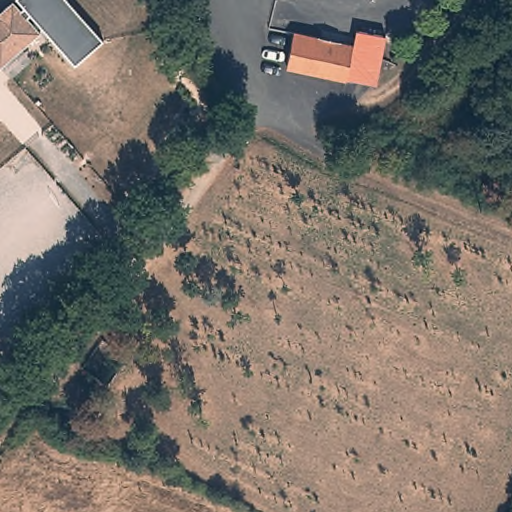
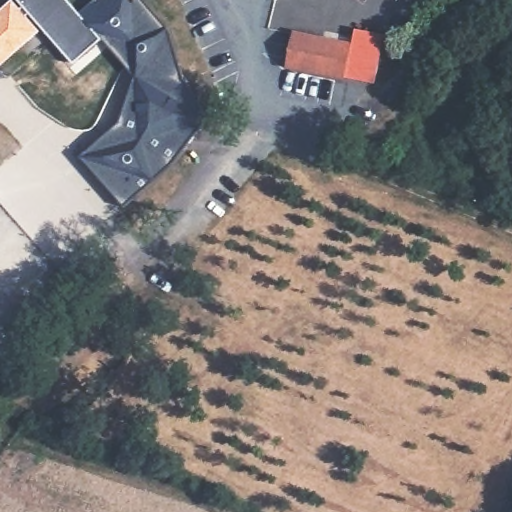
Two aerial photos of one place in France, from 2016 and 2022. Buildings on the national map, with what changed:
unchanged [(41,32),(24,49),(32,59),(10,80),(0,68),(0,12),(14,0),(41,32)]
unchanged [(104,40),(74,67),(41,32),(14,0),(15,0),(69,0),(104,40)]
new [(119,123),(135,77),(104,40),(80,12),(94,0),(144,0),(170,30),(185,79),(210,116),(173,164),(125,208),(80,157),(119,123)]
unchanged [(350,46),(356,47),(359,36),(360,31),(363,32),(388,38),(377,87),(322,75),(290,67),(297,34),(350,46)]
new [(10,80),(0,80),(0,68),(10,80)]

